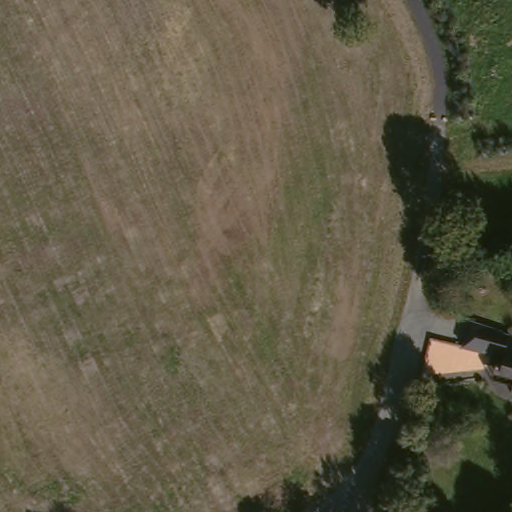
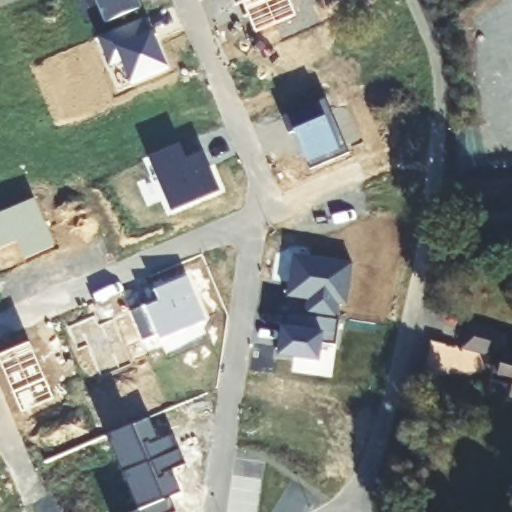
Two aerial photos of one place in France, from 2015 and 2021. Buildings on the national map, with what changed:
new [(109,22),(99,0),(140,0),(143,7),(109,22)]
new [(236,6),(234,0),(290,0),(297,15),(257,33),(250,15),(246,17),(240,4),(236,6)]
new [(146,17),(152,31),(154,30),(170,67),(134,82),(124,61),(112,65),(100,36),(146,17)]
new [(327,98),(350,153),(311,169),(295,131),(290,134),(282,116),(327,98)]
new [(181,143),(187,159),(205,151),(221,189),(172,210),(150,156),(181,143)]
new [(38,200),(57,246),(25,260),(17,243),(0,250),(0,216),(38,200)]
new [(295,255),(354,263),(347,306),(340,305),(338,320),(306,315),(308,301),(288,298),(295,255)]
new [(155,301),(151,291),(187,277),(205,321),(161,340),(159,335),(144,341),(131,311),(155,301)]
new [(96,315),(100,325),(131,311),(144,341),(149,353),(131,360),(133,363),(102,376),(89,344),(79,349),(69,326),(96,315)]
new [(286,312),(306,315),(338,320),(341,320),(336,346),(322,345),(320,361),(280,355),(286,312)]
unchanged [(500,371),(505,354),(495,352),(493,359),(463,352),(470,326),(502,335),(501,338),(508,340),(508,338),(512,339),(512,391),(490,386),(495,369),(500,371)]
new [(30,343),(53,398),(21,412),(0,360),(0,355),(30,343)]
demolished [(36,446),(42,442),(63,485),(4,512),(0,512),(0,377),(36,446)]
unchanged [(512,395),(512,397),(511,397),(512,395)]
new [(151,417),(161,440),(175,434),(187,464),(174,470),(183,493),(172,497),(178,512),(133,512),(139,510),(107,435),(151,417)]

